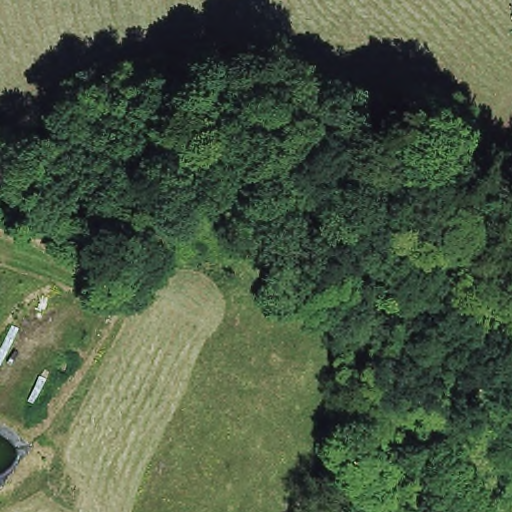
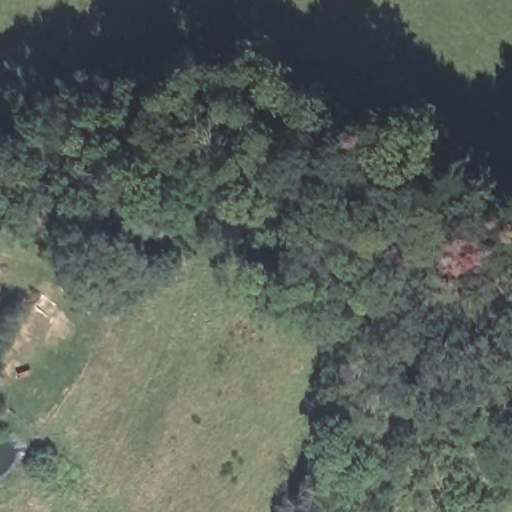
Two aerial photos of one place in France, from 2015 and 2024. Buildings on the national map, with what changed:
[]

